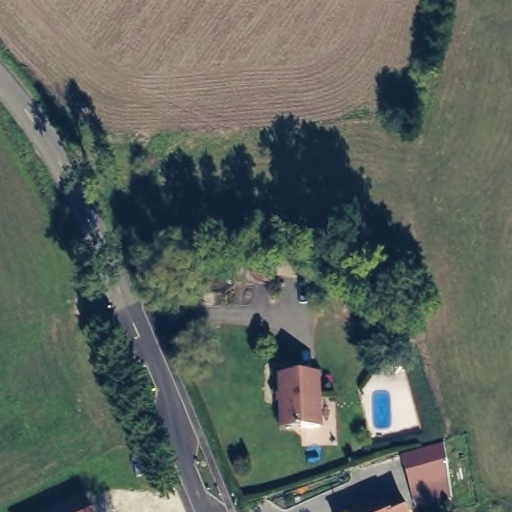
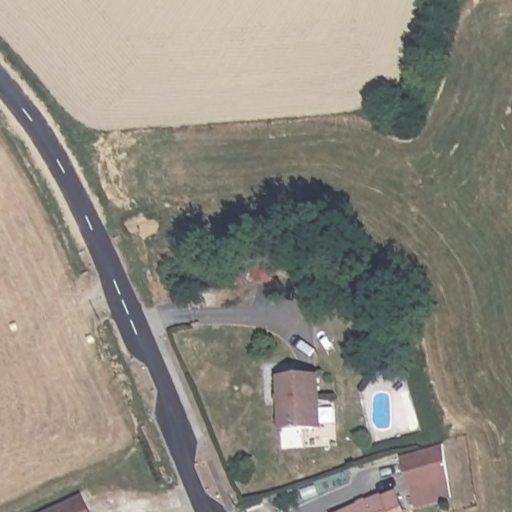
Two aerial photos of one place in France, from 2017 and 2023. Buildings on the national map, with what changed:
unchanged [(262,272),(263,287),(247,287),(247,272),(262,272)]
unchanged [(282,421),(279,377),(317,373),(319,428),(300,429),(283,430),(282,421)]
unchanged [(443,442),(452,498),(415,508),(398,454),(443,442)]
unchanged [(392,494),(400,512),(340,512),(375,497),(377,501),(392,494)]
unchanged [(90,512),(51,512),(83,497),(90,512)]

